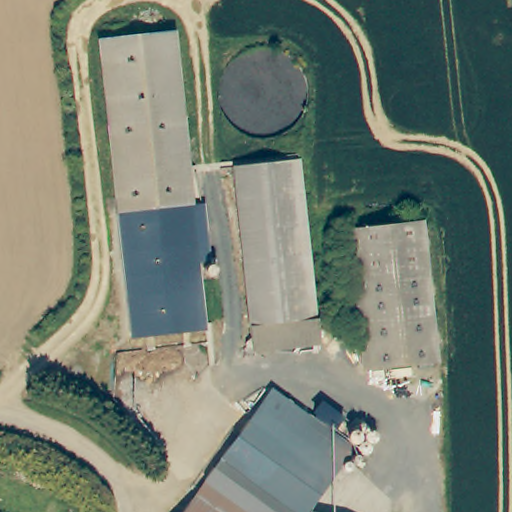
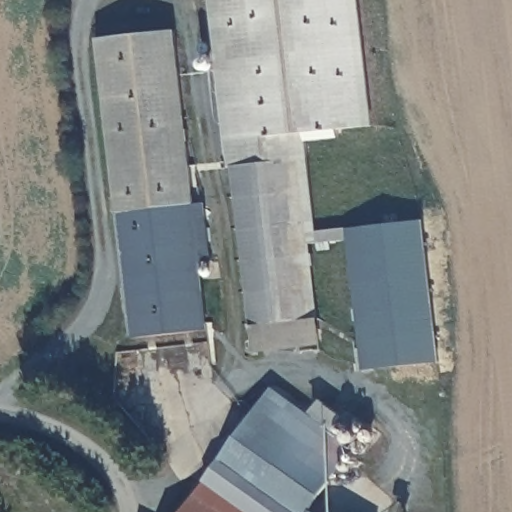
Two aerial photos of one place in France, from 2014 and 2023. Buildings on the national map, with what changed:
new [(210,0),(360,0),(375,127),(340,129),(341,138),(308,141),(317,229),(357,226),(372,368),(362,369),(348,240),(311,243),(322,345),(314,346),(296,161),(234,167),(229,168),(210,0)]
unchanged [(209,332),(132,340),(99,40),(169,31),(176,30),(187,134),(209,332)]
unchanged [(296,161),(314,346),(255,352),(234,167),(296,161)]
unchanged [(423,218),(439,360),(372,368),(357,226),(423,218)]
unchanged [(252,414),(266,395),(273,385),(353,444),(305,512),(216,512),(193,495),(252,414)]
unchanged [(193,495),(216,512),(181,512),(193,495)]

